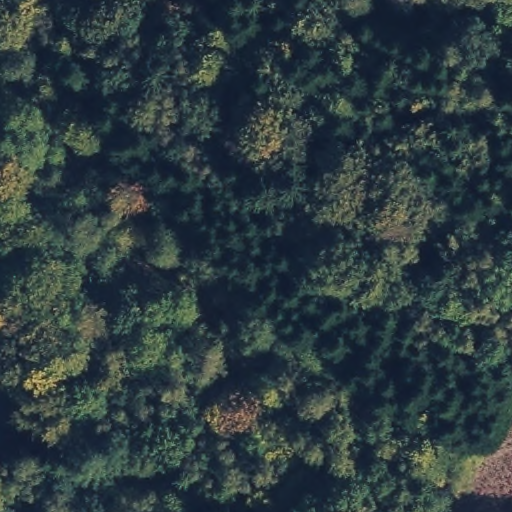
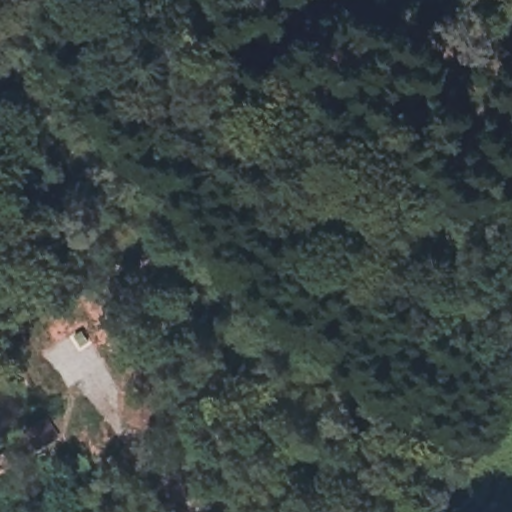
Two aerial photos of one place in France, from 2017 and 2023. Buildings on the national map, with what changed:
[]

